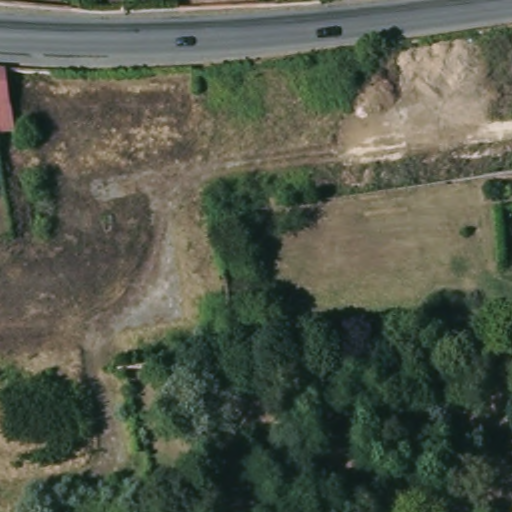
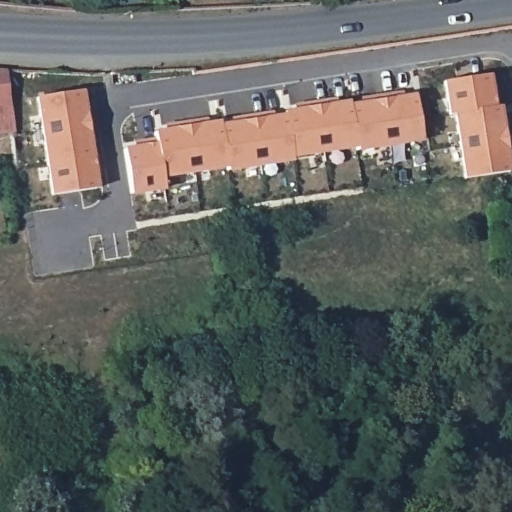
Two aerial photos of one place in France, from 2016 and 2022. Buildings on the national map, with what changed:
unchanged [(15,139),(7,140),(0,141),(0,71),(7,71),(15,139)]
new [(488,75),(494,107),(500,106),(510,173),(465,179),(455,114),(450,115),(445,82),(488,75)]
new [(35,97),(82,90),(85,100),(89,101),(95,144),(91,144),(94,154),(96,154),(100,175),(95,176),(97,189),(51,195),(35,97)]
new [(414,96),(421,140),(357,150),(356,145),(350,105),(414,96)]
new [(356,145),(293,155),(294,160),(229,170),(227,165),(162,175),(165,186),(126,194),(118,150),(125,150),(124,147),(156,141),(153,131),(272,112),(273,115),(285,113),(284,111),(348,100),(350,105),(356,145)]

